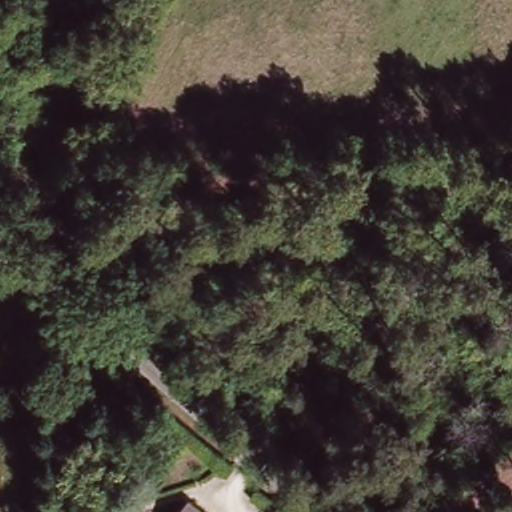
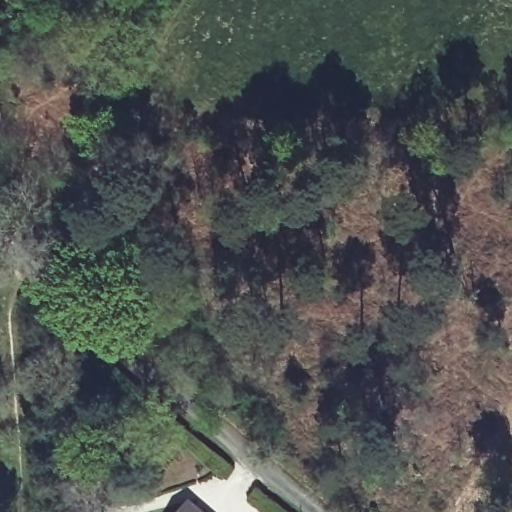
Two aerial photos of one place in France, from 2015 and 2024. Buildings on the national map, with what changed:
unchanged [(211,512),(191,512),(199,502),(211,512)]

